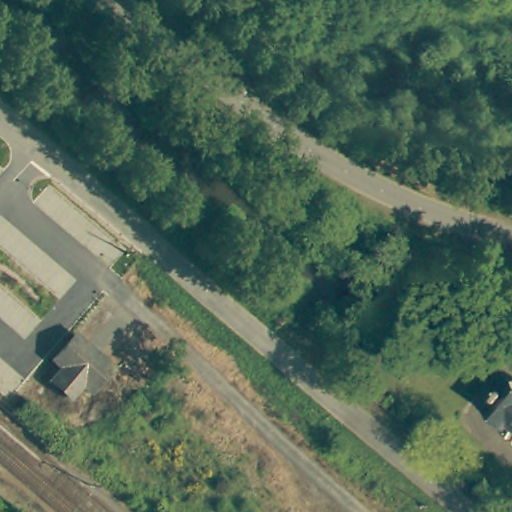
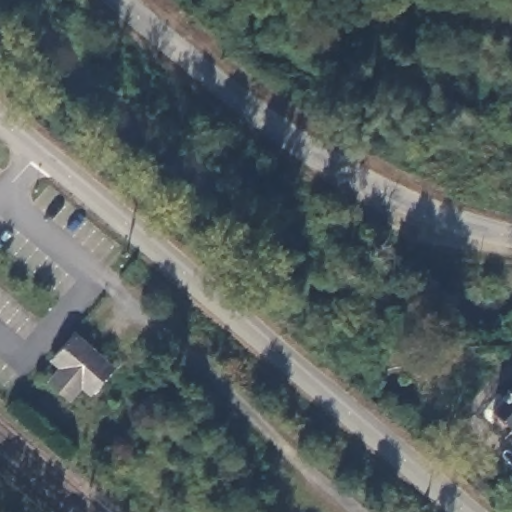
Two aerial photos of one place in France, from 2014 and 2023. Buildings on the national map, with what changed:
unchanged [(113,365),(90,389),(83,382),(71,393),(55,377),(65,366),(52,354),(75,330),(113,365)]
unchanged [(508,419),(512,414),(512,422),(508,419)]

